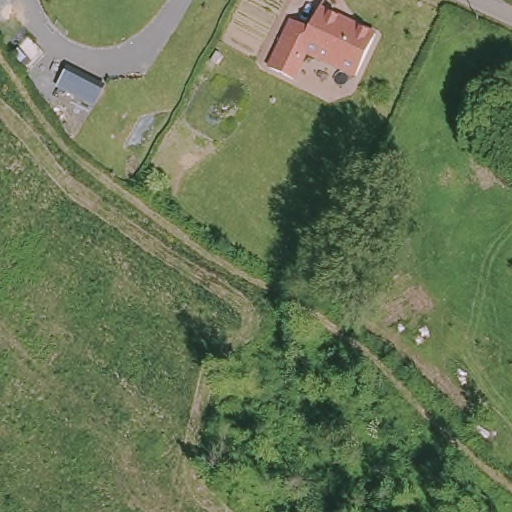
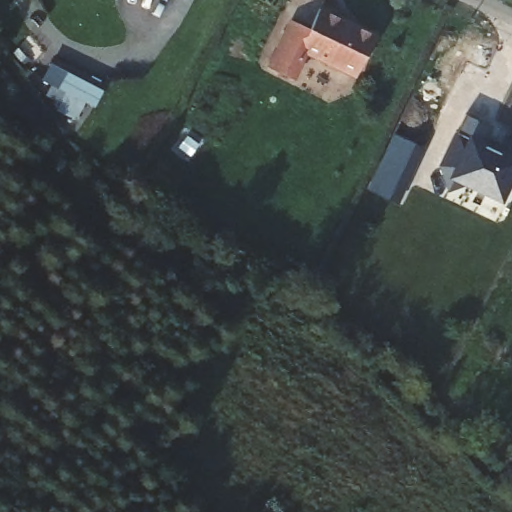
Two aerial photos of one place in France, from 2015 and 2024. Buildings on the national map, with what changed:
unchanged [(290,77),(270,69),(291,20),(310,29),(318,8),(376,34),(359,75),(307,52),(303,61),(295,80),(290,77)]
unchanged [(56,87),(68,63),(106,85),(95,107),(56,87)]
new [(448,192),(439,169),(466,114),(480,120),(471,135),(512,156),(512,183),(502,203),(465,185),(448,192)]
new [(368,189),(393,134),(425,148),(398,203),(368,189)]

